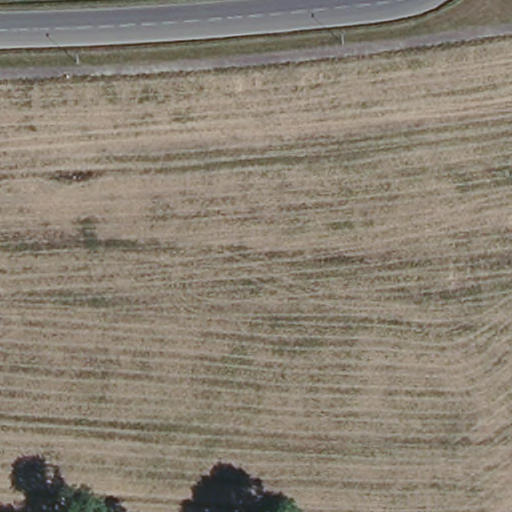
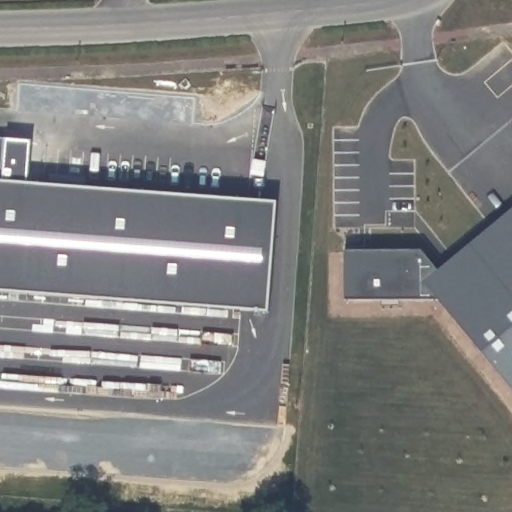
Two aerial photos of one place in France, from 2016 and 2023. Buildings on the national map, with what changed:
new [(0,176),(0,139),(4,140),(0,176)]
new [(277,203),(269,311),(0,293),(0,182),(277,203)]
new [(425,281),(512,210),(512,396),(433,304),(343,303),(349,258),(426,261),(425,281)]

